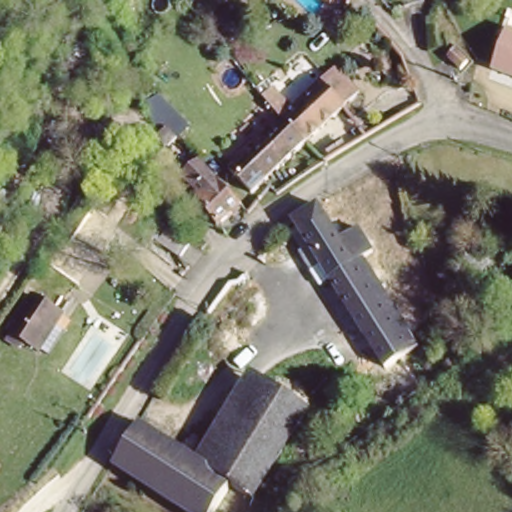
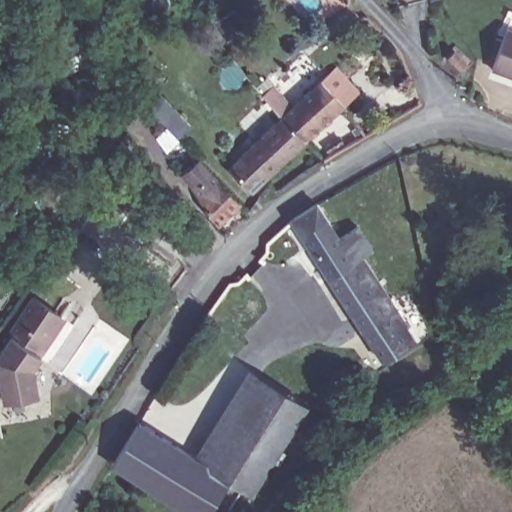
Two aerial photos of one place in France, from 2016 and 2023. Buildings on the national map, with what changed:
unchanged [(510,75),(488,65),(504,24),(512,28),(512,75),(510,75)]
unchanged [(294,110),(322,82),(335,70),(359,94),(347,106),(308,142),(284,119),(265,99),(275,90),(294,110)]
unchanged [(470,80),(467,95),(456,91),(459,78),(470,80)]
unchanged [(174,144),(140,111),(158,93),(190,126),(174,144)]
unchanged [(230,171),(247,155),(284,119),(308,142),(269,179),(252,195),(230,171)]
unchanged [(360,120),(365,127),(357,131),(352,125),(360,120)]
unchanged [(203,166),(218,182),(240,206),(220,225),(197,202),(203,196),(189,180),(203,166)]
unchanged [(318,200),(340,235),(357,224),(375,249),(370,251),(419,327),(433,348),(414,361),(427,381),(410,392),(402,381),(397,385),(327,275),(317,282),(297,250),(306,244),(292,220),(318,200)]
unchanged [(165,232),(175,220),(195,235),(185,247),(165,232)]
unchanged [(24,345),(20,352),(7,345),(12,337),(10,335),(35,296),(64,315),(52,331),(64,338),(48,361),(24,345)]
new [(40,395),(5,401),(0,373),(0,356),(7,345),(20,352),(24,345),(42,357),(35,368),(40,395)]
unchanged [(262,380),(308,411),(254,493),(225,475),(207,462),(262,380)]
unchanged [(140,417),(207,462),(225,475),(201,512),(197,512),(115,457),(140,417)]

